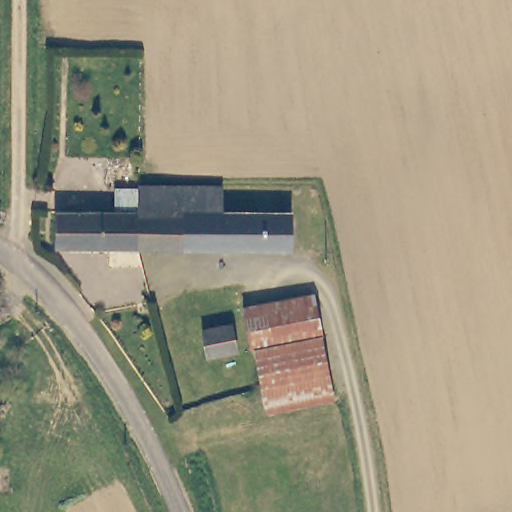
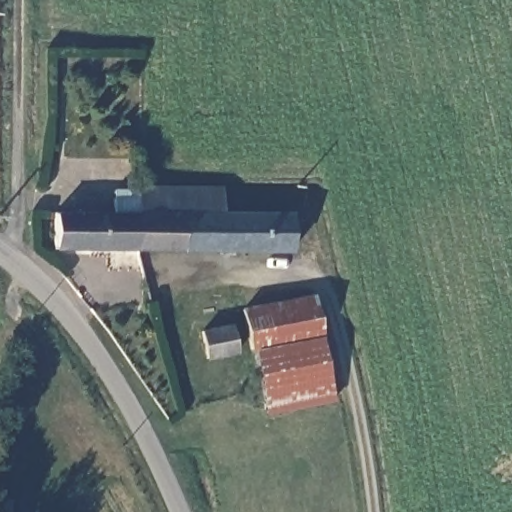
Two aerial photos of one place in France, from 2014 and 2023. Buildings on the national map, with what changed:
unchanged [(59,209),(115,210),(116,189),(141,189),(141,185),(225,189),(225,213),(292,215),(291,250),(291,252),(142,249),(57,247),(59,209)]
unchanged [(323,339),(258,350),(253,351),(246,309),(313,298),(323,339)]
unchanged [(207,357),(202,329),(232,324),(237,352),(207,357)]
unchanged [(337,401),(270,414),(258,350),(323,339),(337,401)]

